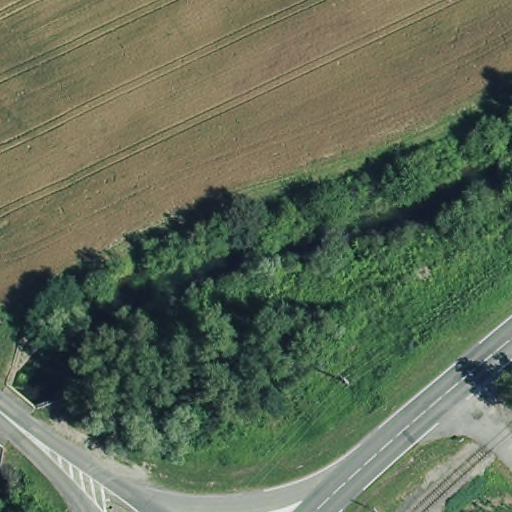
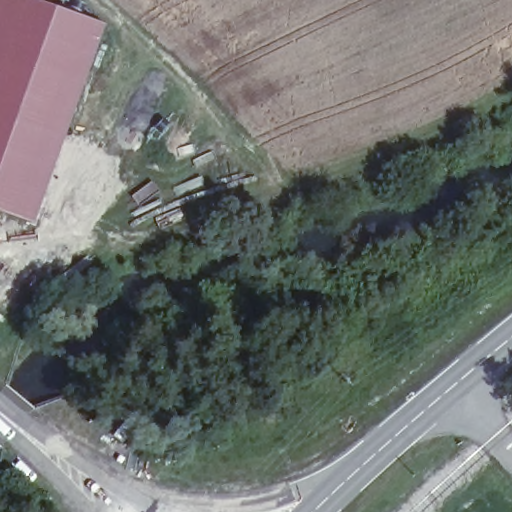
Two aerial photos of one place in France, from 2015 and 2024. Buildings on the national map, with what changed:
new [(105,24),(34,223),(0,211),(0,10),(4,0),(38,0),(105,24)]

